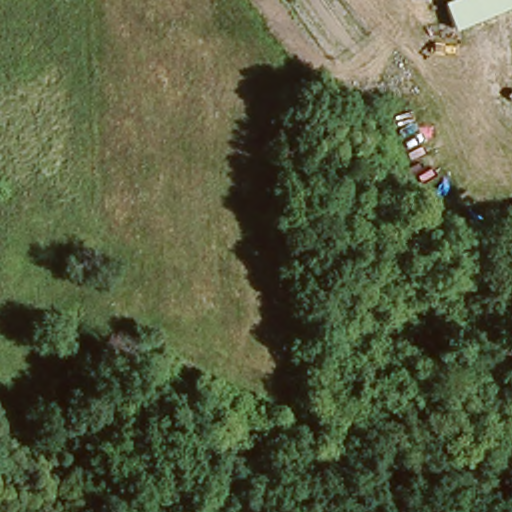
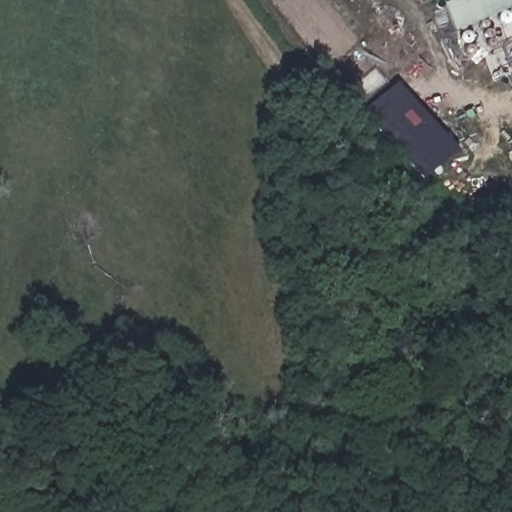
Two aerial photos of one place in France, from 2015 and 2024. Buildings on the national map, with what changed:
new [(454,32),(443,3),(450,0),(512,0),(512,7),(454,32)]
new [(422,179),(360,112),(398,82),(459,151),(422,179)]

